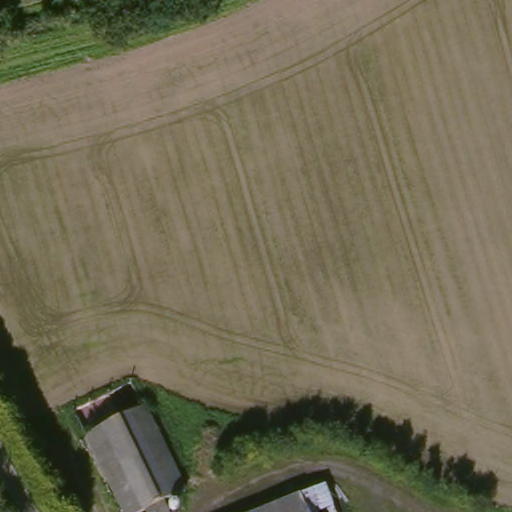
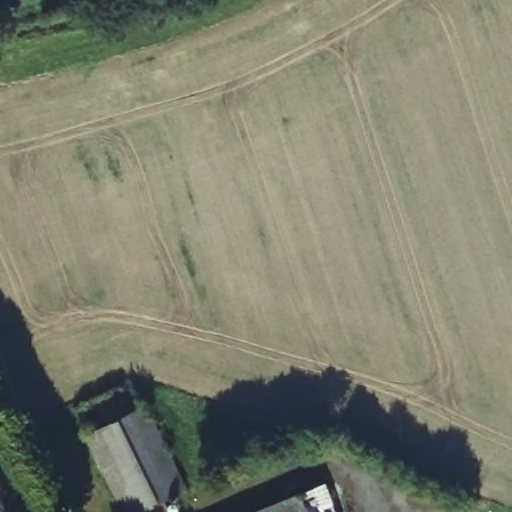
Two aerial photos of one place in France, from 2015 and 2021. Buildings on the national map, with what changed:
unchanged [(170,498),(175,512),(154,512),(152,508),(144,512),(136,512),(96,435),(149,408),(189,488),(170,498)]
unchanged [(332,480),(347,512),(257,512),(307,491),(332,480)]

